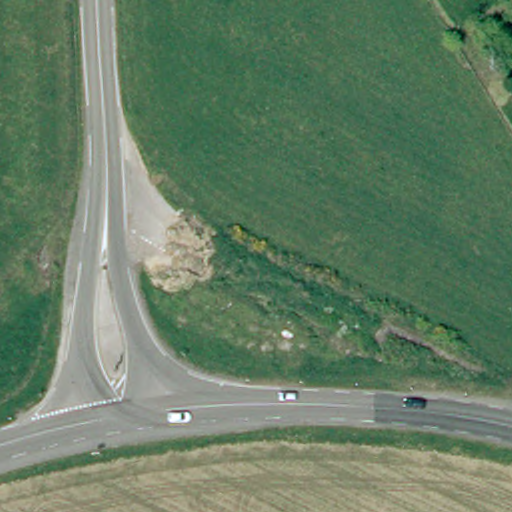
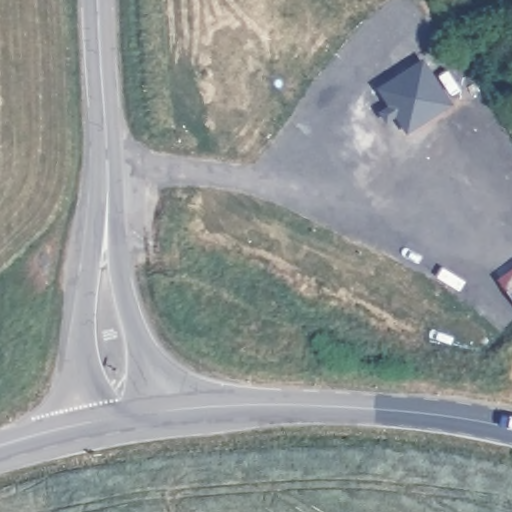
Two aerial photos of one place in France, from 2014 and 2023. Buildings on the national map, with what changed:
new [(381,88),(423,61),(450,102),(409,130),(397,112),(387,119),(382,112),(392,105),(381,88)]
new [(512,277),(512,294),(504,282),(512,277)]

